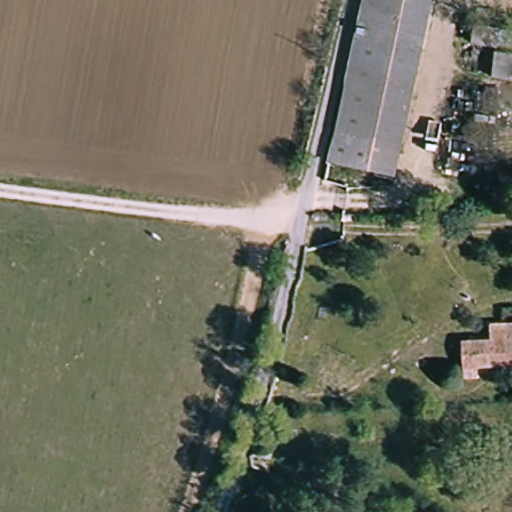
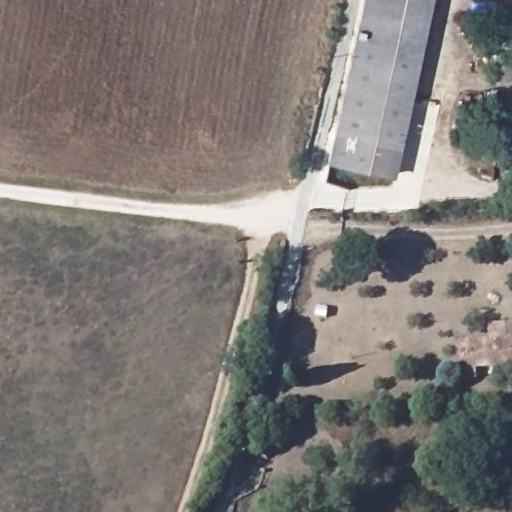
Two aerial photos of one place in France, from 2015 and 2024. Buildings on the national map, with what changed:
unchanged [(360,0),(431,0),(392,180),(324,165),(360,0)]
unchanged [(476,383),(460,383),(458,341),(488,340),(487,324),(512,323),(512,368),(476,370),(476,383)]
unchanged [(270,464),(267,468),(264,471),(259,471),(255,471),(251,468),(248,464),(248,459),(248,455),(251,452),(255,449),(259,448),(264,449),(267,452),(270,455),(271,459),(270,464)]

